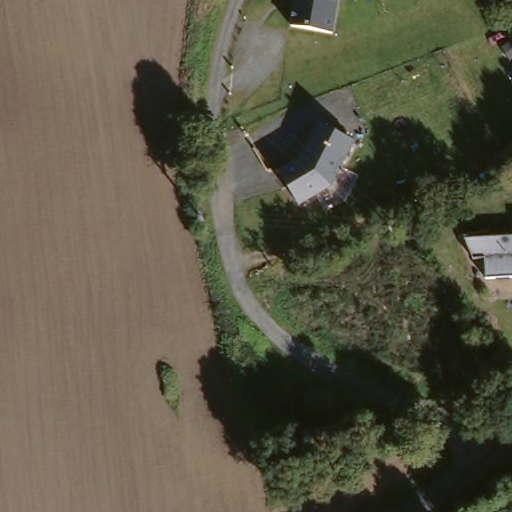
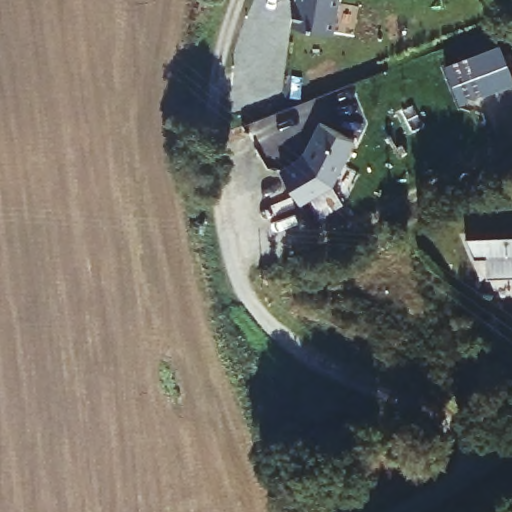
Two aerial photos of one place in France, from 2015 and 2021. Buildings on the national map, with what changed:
unchanged [(202,1),(202,0),(218,0),(217,2),(202,1)]
unchanged [(295,0),(337,0),(332,37),(291,32),(295,0)]
new [(512,79),(512,87),(457,106),(444,68),(501,49),(512,79)]
unchanged [(312,165),(328,129),(363,145),(342,191),(310,211),(290,178),(312,165)]
unchanged [(485,255),(466,256),(467,237),(512,234),(512,275),(486,276),(485,255)]

